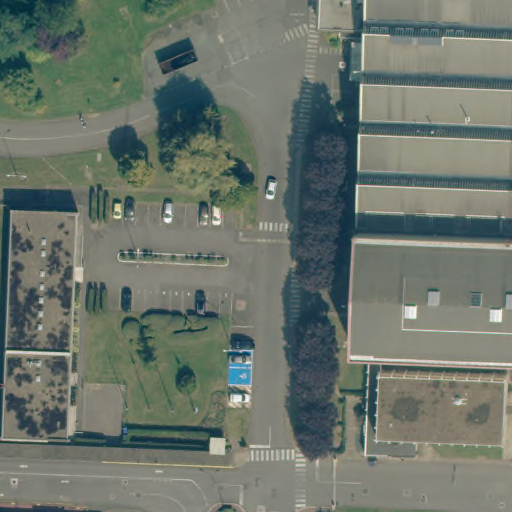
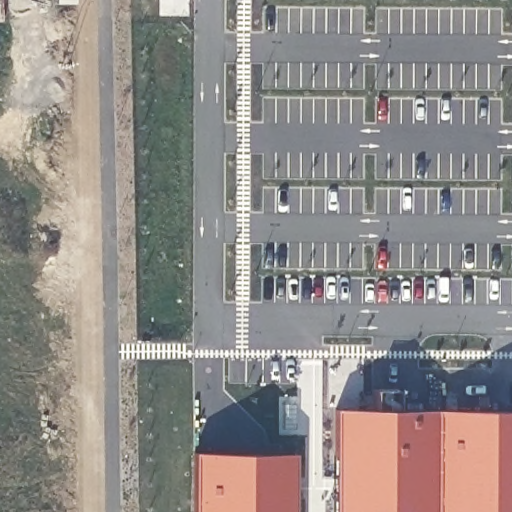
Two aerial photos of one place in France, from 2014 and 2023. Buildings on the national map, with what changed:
demolished [(384,352),(382,368),(507,374),(505,439),(417,436),(415,456),(366,453),(370,350),(355,349),(367,27),(321,25),(322,0),(512,0),(512,356),(384,352)]
demolished [(2,423),(2,420),(4,420),(13,197),(10,197),(10,193),(78,196),(78,199),(76,199),(67,423),(71,423),(71,425),(2,423)]
new [(512,415),(512,512),(333,512),(334,414),(512,415)]
demolished [(214,434),(214,423),(224,424),(224,434),(214,434)]
new [(292,457),(292,512),(188,512),(188,456),(292,457)]

